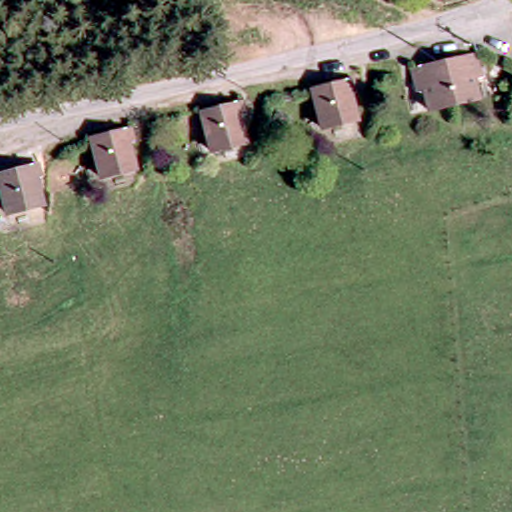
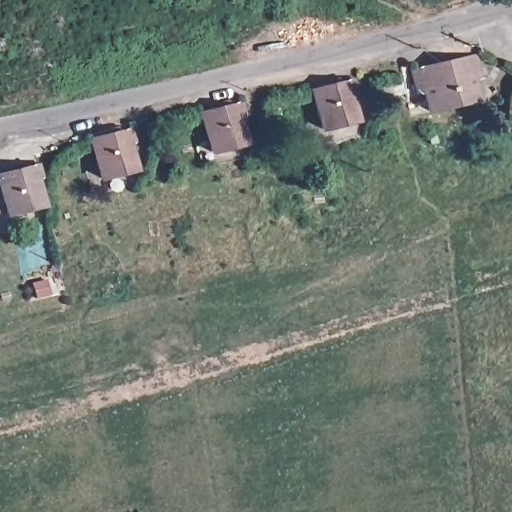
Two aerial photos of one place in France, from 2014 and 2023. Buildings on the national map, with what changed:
unchanged [(473,48),(477,63),(464,66),(470,101),(422,112),(418,90),(407,92),(401,65),(473,48)]
unchanged [(357,80),(360,90),(347,93),(353,124),(317,131),(308,90),(357,80)]
unchanged [(240,100),(242,110),(234,112),(240,141),(204,149),(196,111),(240,100)]
unchanged [(130,127),(131,134),(120,137),(128,167),(95,177),(85,140),(130,127)]
unchanged [(40,174),(30,176),(35,205),(0,213),(0,175),(37,166),(40,174)]

